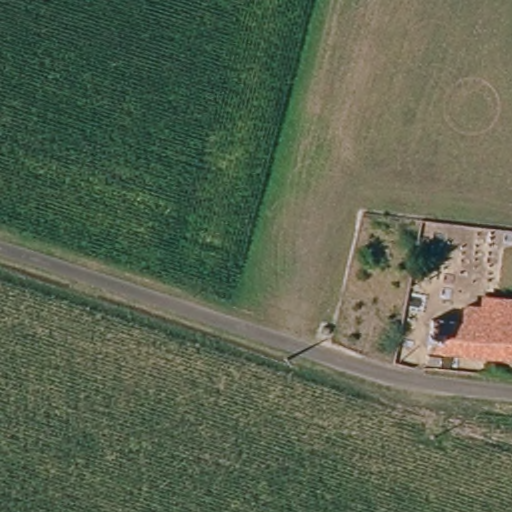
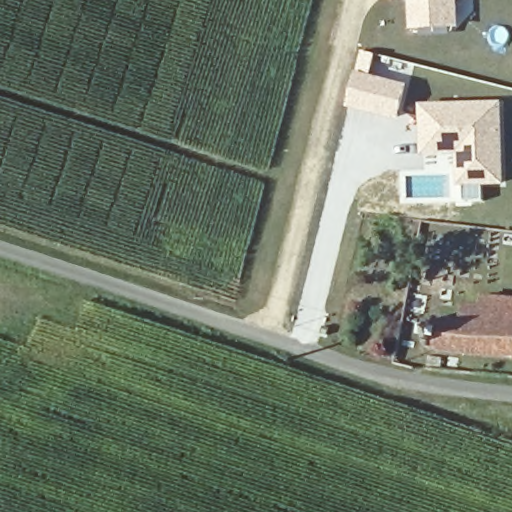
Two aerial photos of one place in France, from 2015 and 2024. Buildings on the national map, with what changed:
new [(411,30),(410,0),(459,0),(460,28),(411,30)]
new [(348,109),(357,72),(408,85),(399,122),(348,109)]
new [(502,103),(505,186),(457,187),(455,155),(423,156),(420,105),(502,103)]
unchanged [(512,292),(512,357),(428,350),(430,318),(462,319),(463,303),(481,304),(482,290),(512,292)]
demolished [(436,411),(434,419),(424,417),(426,409),(436,411)]
demolished [(487,415),(483,437),(457,433),(460,411),(487,415)]

